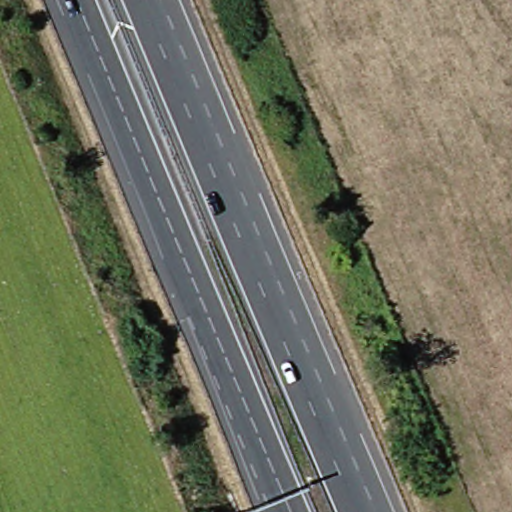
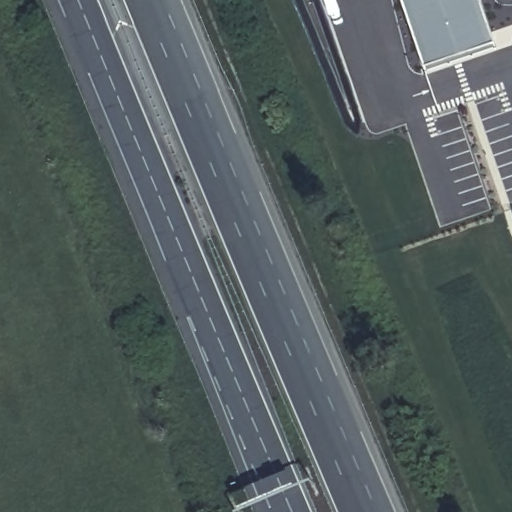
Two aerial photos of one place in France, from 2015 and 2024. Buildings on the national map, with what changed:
new [(496,45),(425,69),(402,0),(480,0),(496,45)]

